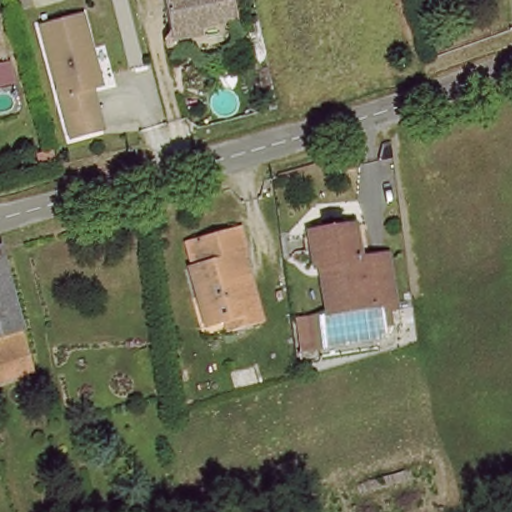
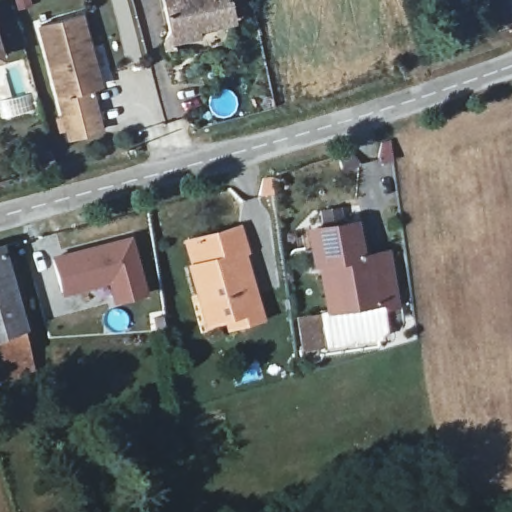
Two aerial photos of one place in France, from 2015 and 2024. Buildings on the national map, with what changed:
unchanged [(174,42),(173,34),(166,0),(235,0),(239,21),(202,28),(203,36),(174,42)]
unchanged [(99,92),(89,95),(100,135),(68,143),(39,32),(80,21),(89,54),(99,92)]
unchanged [(6,58),(0,59),(0,36),(6,58)]
unchanged [(319,265),(309,267),(304,230),(350,224),(357,265),(366,264),(365,257),(384,255),(391,311),(371,314),(370,307),(332,312),(326,313),(319,265)]
unchanged [(177,250),(187,247),(234,233),(242,258),(236,260),(229,262),(247,318),(204,332),(185,274),(177,250)]
new [(130,237),(145,294),(112,305),(107,284),(60,298),(50,257),(130,237)]
unchanged [(247,318),(229,262),(236,260),(259,328),(226,339),(224,334),(206,341),(204,332),(247,318)]
unchanged [(23,353),(0,362),(0,269),(23,353)]
unchanged [(312,326),(316,359),(296,361),(292,328),(312,326)]

